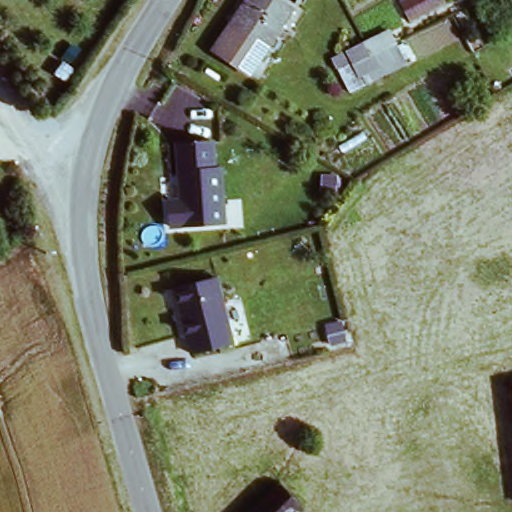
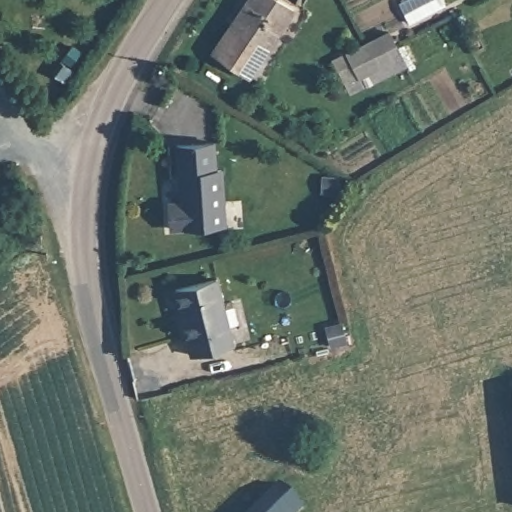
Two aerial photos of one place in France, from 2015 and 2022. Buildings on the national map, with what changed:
unchanged [(220,40),(232,19),(245,0),(274,0),(288,10),(266,43),(255,59),(248,70),(215,48),(220,40)]
unchanged [(442,0),(444,4),(407,23),(398,0),(442,0)]
unchanged [(409,66),(350,95),(332,61),(393,31),(409,66)]
unchanged [(180,144),(216,143),(216,171),(221,171),(222,226),(167,226),(167,200),(179,200),(179,170),(180,144)]
unchanged [(215,282),(230,346),(187,355),(174,291),(215,282)]
unchanged [(303,510),(301,512),(251,512),(281,481),(303,510)]

